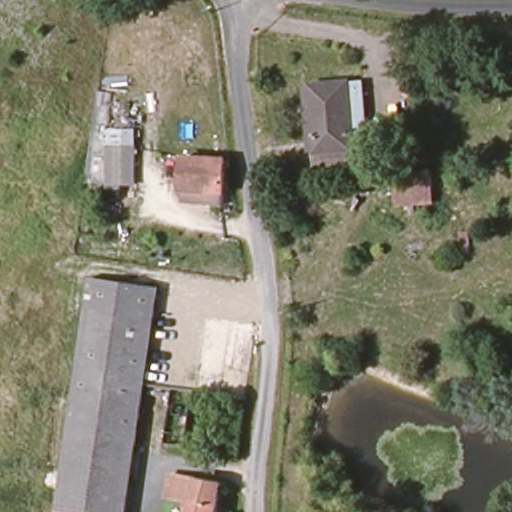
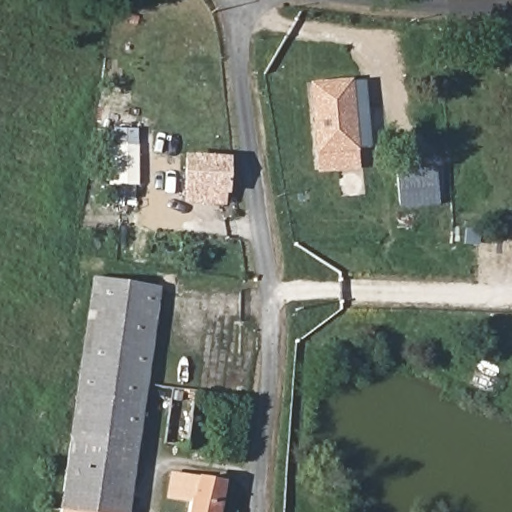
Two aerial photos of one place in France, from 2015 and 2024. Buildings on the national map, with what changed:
unchanged [(318,150),(311,85),(351,81),(359,144),(318,150)]
unchanged [(99,184),(108,146),(134,151),(126,189),(99,184)]
unchanged [(184,190),(186,180),(190,148),(225,154),(220,185),(219,196),(184,190)]
unchanged [(438,203),(400,208),(395,169),(433,166),(438,203)]
unchanged [(97,274),(162,283),(142,437),(111,434),(107,469),(70,462),(97,274)]
unchanged [(111,434),(142,437),(132,512),(102,512),(63,507),(70,462),(107,469),(111,434)]
unchanged [(184,512),(185,501),(175,499),(167,498),(169,479),(177,481),(219,489),(216,512),(184,512)]
unchanged [(63,512),(63,507),(102,512),(63,512)]

